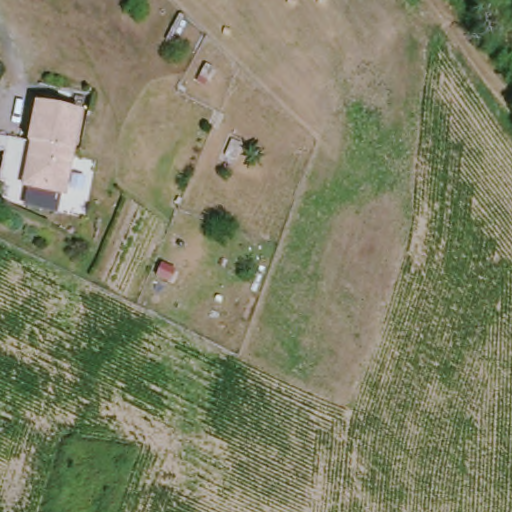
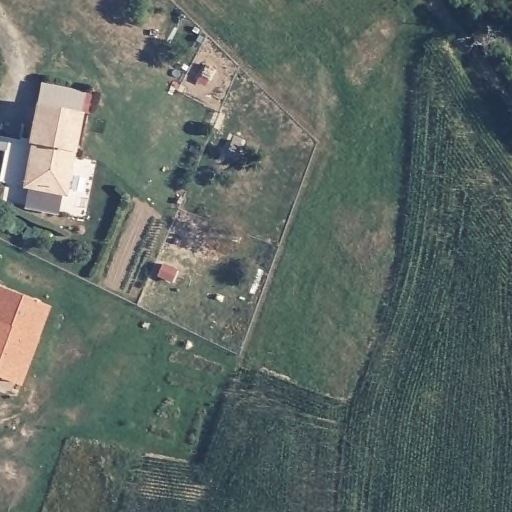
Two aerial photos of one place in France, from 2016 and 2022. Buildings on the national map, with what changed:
unchanged [(85,111),(70,196),(5,185),(12,139),(33,141),(39,102),(85,111)]
new [(20,385),(0,378),(0,288),(49,306),(20,385)]

